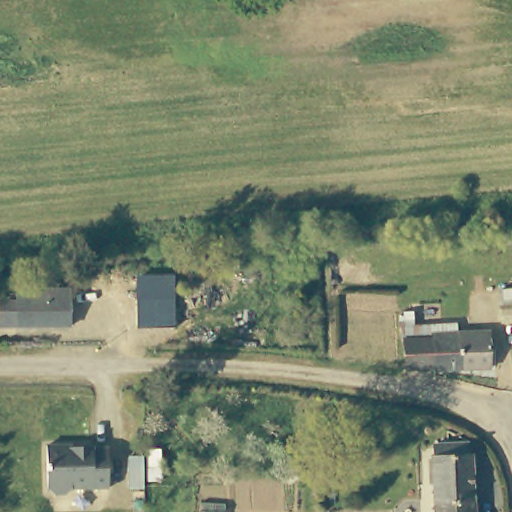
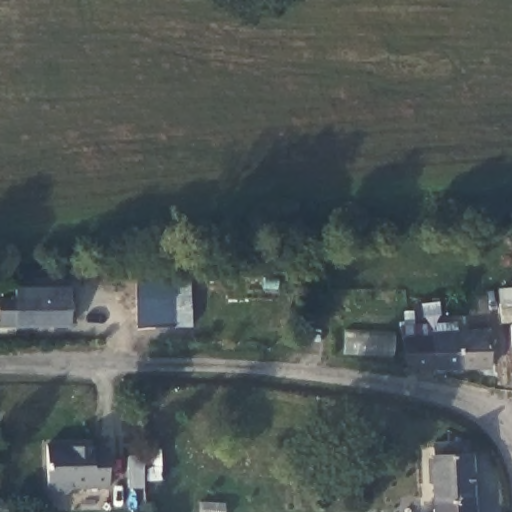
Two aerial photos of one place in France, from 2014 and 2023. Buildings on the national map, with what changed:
unchanged [(138,328),(136,275),(173,274),(174,327),(138,328)]
unchanged [(16,287),(71,286),(72,323),(17,325),(0,325),(0,300),(16,300),(16,287)]
unchanged [(502,321),(499,289),(512,287),(512,320),(502,321)]
unchanged [(407,340),(433,338),(437,338),(438,325),(466,324),(466,330),(467,366),(434,366),(413,366),(407,340)]
unchanged [(466,330),(495,329),(495,365),(467,366),(466,330)]
unchanged [(63,438),(65,441),(108,443),(108,482),(71,482),(66,487),(54,487),(49,482),(46,482),(46,438),(63,438)]
unchanged [(436,454),(438,454),(438,442),(472,441),(472,452),(475,452),(478,512),(439,512),(436,454)]

